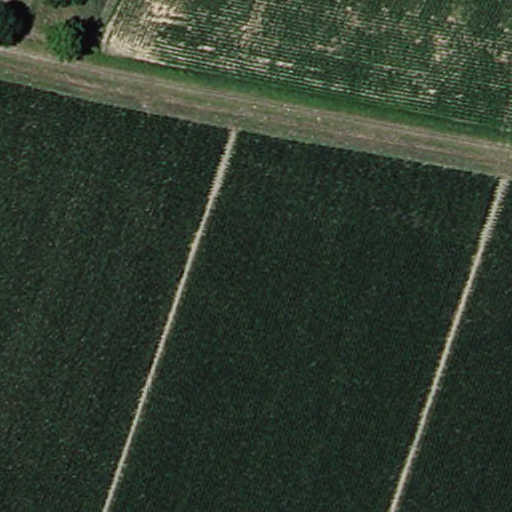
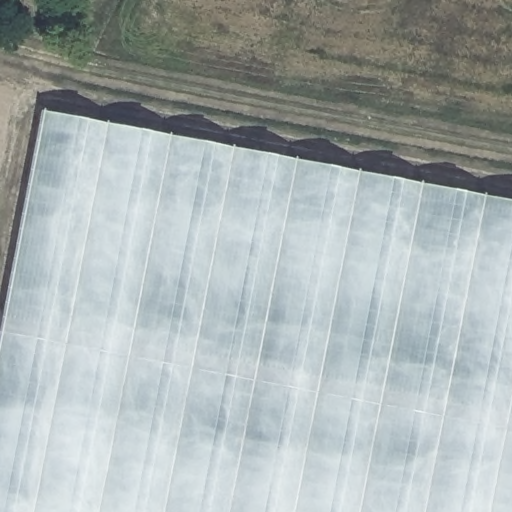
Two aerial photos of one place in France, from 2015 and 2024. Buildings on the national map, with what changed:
new [(41,112),(512,201),(512,512),(0,512),(0,330),(41,112)]

